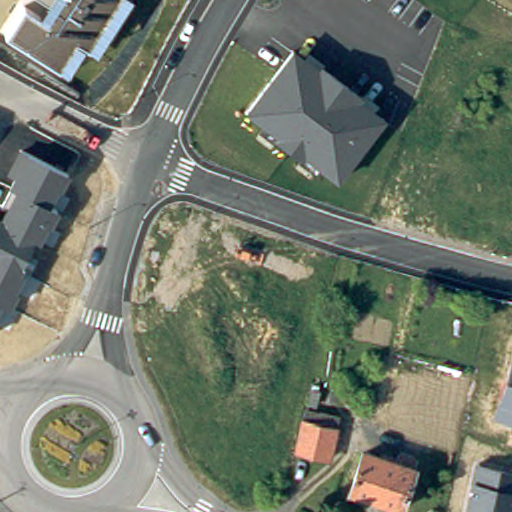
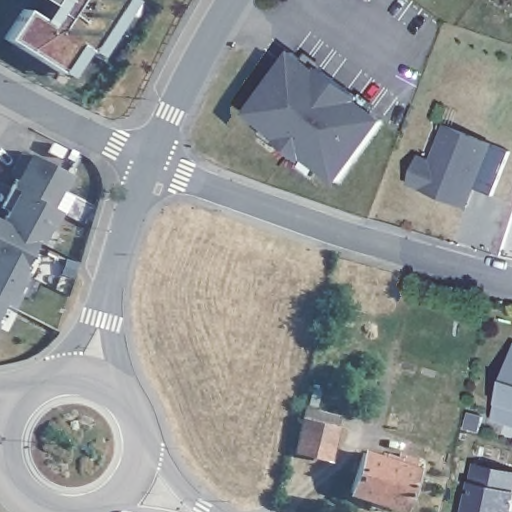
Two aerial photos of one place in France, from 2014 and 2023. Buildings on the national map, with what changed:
unchanged [(83,48),(66,76),(5,39),(25,9),(41,20),(49,6),(39,0),(134,0),(98,56),(83,48)]
unchanged [(388,119),(339,183),(244,112),(294,47),(388,119)]
new [(476,187),(469,208),(409,186),(419,154),(433,159),(444,126),(494,145),(511,150),(494,194),(476,187)]
unchanged [(68,173),(53,207),(58,210),(43,243),(37,240),(16,286),(22,288),(13,310),(2,305),(0,309),(0,217),(1,217),(15,190),(8,186),(14,176),(8,173),(20,149),(68,173)]
unchanged [(512,355),(512,426),(494,420),(512,355)]
unchanged [(337,427),(330,458),(297,451),(304,419),(337,427)]
unchanged [(374,456),(376,451),(393,456),(394,450),(413,456),(396,510),(346,492),(360,451),(374,456)]
unchanged [(512,512),(463,512),(475,461),(512,470),(512,512)]

